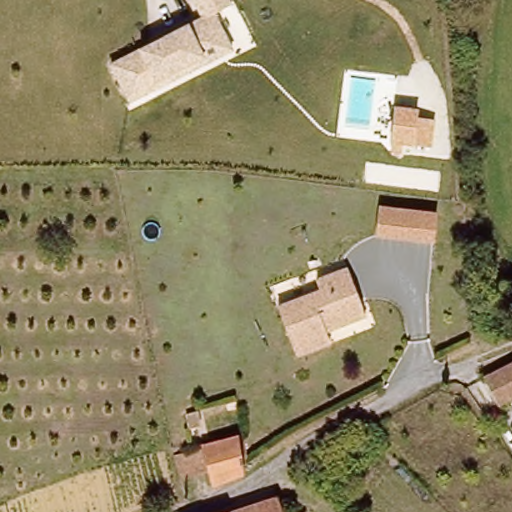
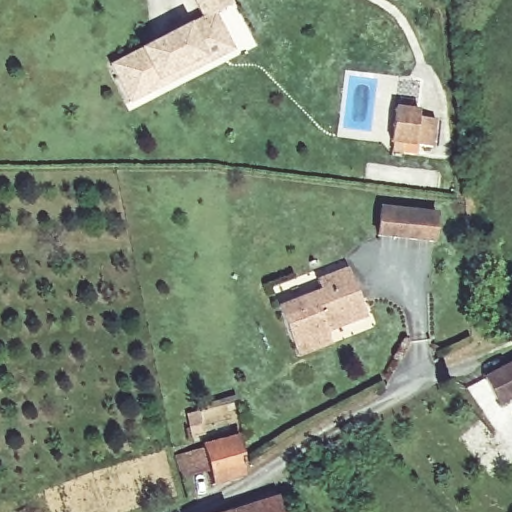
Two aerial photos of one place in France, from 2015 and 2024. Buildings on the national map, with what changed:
unchanged [(129,101),(110,64),(145,45),(150,43),(161,37),(201,17),(192,0),(227,0),(230,4),(212,13),(223,35),(230,50),(217,56),(154,88),(129,101)]
unchanged [(386,146),(390,106),(417,109),(416,118),(436,120),(432,153),(395,148),(395,149),(394,157),(385,156),(386,149),(386,146)]
unchanged [(438,211),(434,245),(375,238),(380,206),(438,211)]
unchanged [(328,343),(295,356),(275,308),(316,290),(312,280),(342,268),(362,315),(334,327),(323,331),(328,343)]
unchanged [(483,385),(512,368),(512,402),(498,410),(483,385)]
unchanged [(208,484),(203,452),(242,442),(246,476),(208,484)]

